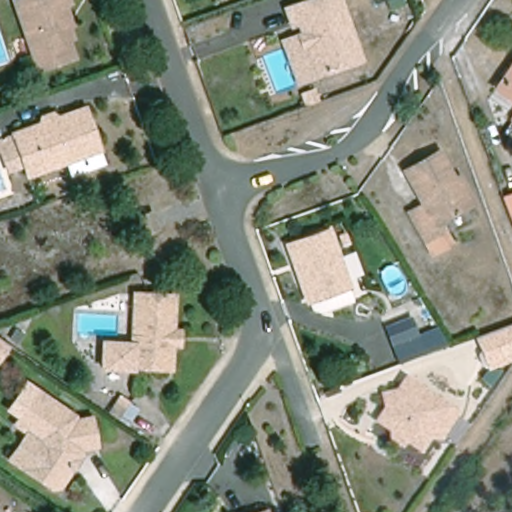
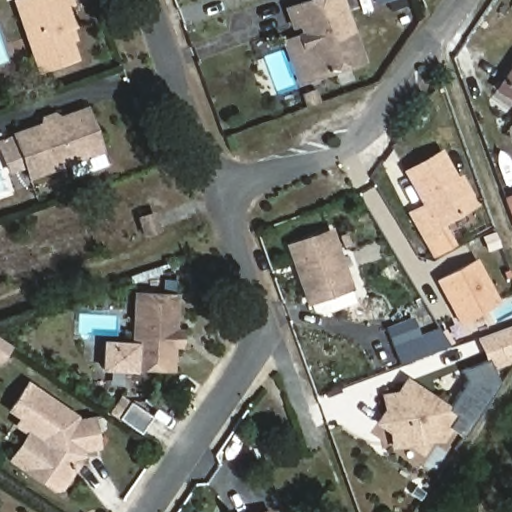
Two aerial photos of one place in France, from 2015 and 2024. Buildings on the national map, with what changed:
unchanged [(38,70),(15,0),(16,0),(69,0),(70,3),(63,6),(66,16),(70,28),(66,30),(74,57),(38,70)]
unchanged [(298,34),(302,32),(298,22),(291,24),(285,8),(308,0),(339,0),(359,59),(316,74),(306,45),(302,46),(298,34)]
unchanged [(371,0),(379,0),(372,2),(371,0)]
unchanged [(497,90),(512,68),(512,101),(497,90)]
unchanged [(99,151),(27,176),(13,134),(41,124),(40,119),(51,115),(53,120),(85,109),(99,151)]
unchanged [(449,245),(432,255),(411,217),(425,208),(405,175),(437,155),(453,182),(459,179),(474,204),(468,207),(437,226),(449,245)]
unchanged [(503,196),(512,193),(512,224),(503,196)]
unchanged [(135,221),(151,215),(156,232),(141,237),(135,221)]
unchanged [(346,281),(344,282),(348,292),(313,304),(311,303),(308,295),(305,296),(285,239),(326,225),(346,281)]
new [(457,320),(437,281),(474,262),(493,301),(457,320)]
unchanged [(180,346),(172,345),(170,369),(134,368),(134,371),(105,370),(104,370),(104,367),(105,345),(133,346),(136,295),(174,296),(172,331),(180,331),(180,346)]
unchanged [(387,330),(413,321),(425,356),(400,365),(387,330)]
unchanged [(489,368),(477,337),(512,323),(512,357),(489,368)]
unchanged [(0,353),(0,346),(4,348),(0,353)]
unchanged [(391,431),(379,423),(386,412),(386,396),(400,395),(410,382),(460,416),(444,440),(431,439),(422,451),(410,443),(400,446),(395,447),(391,431)]
unchanged [(58,491),(9,457),(27,431),(16,423),(38,392),(74,417),(75,421),(91,418),(96,444),(83,448),(84,455),(74,469),(58,491)]
unchanged [(263,512),(260,512),(263,511),(263,512)]

